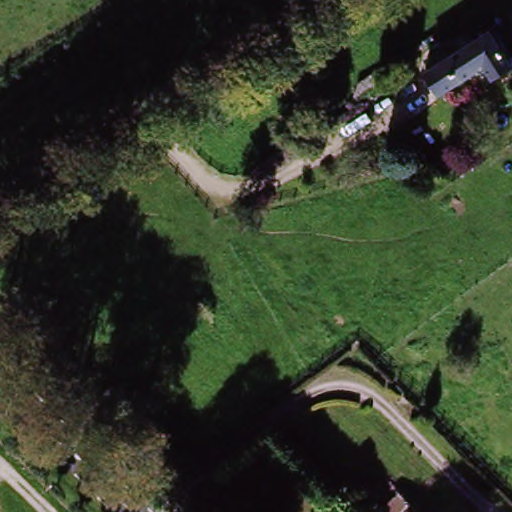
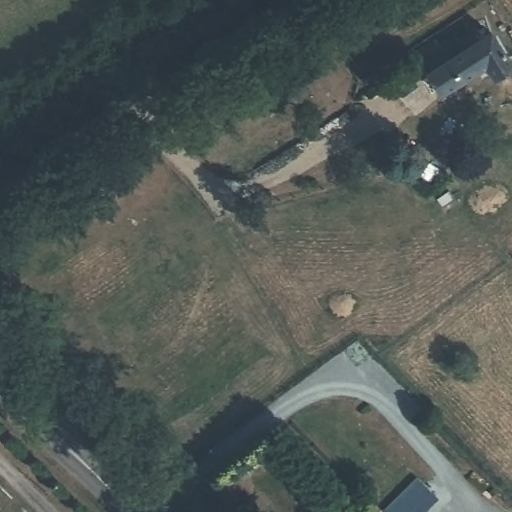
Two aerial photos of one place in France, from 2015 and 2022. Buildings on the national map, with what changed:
unchanged [(484,44),(497,35),(512,59),(512,75),(494,87),(486,74),(448,97),(434,76),(440,72),(434,64),(451,52),(454,57),(463,50),(460,46),(477,34),(484,44)]
demolished [(370,484),(381,474),(414,512),(394,512),(370,484)]
new [(417,481),(437,502),(427,512),(385,512),(417,481)]

